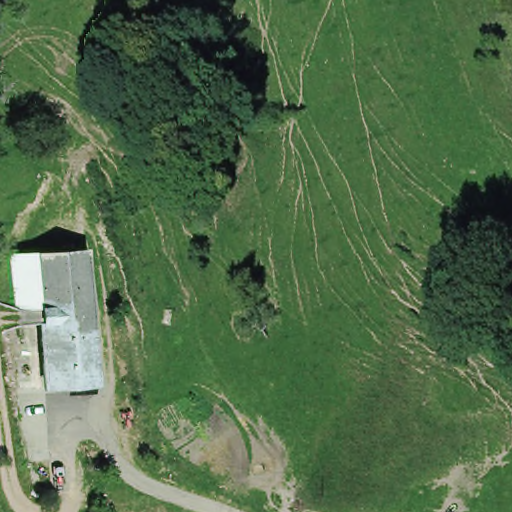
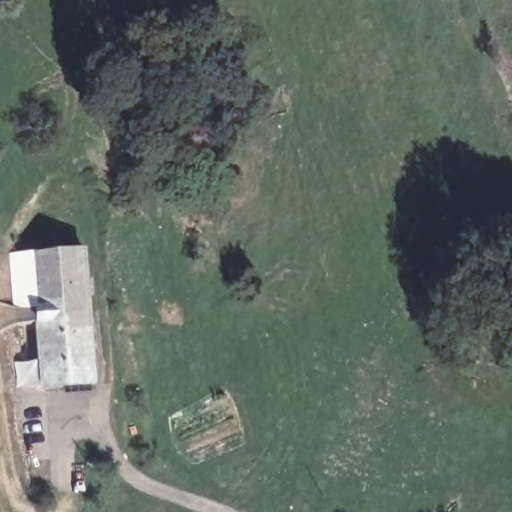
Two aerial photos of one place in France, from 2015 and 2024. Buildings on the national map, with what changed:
unchanged [(42,321),(35,251),(84,247),(97,379),(48,384),(42,321)]
unchanged [(19,323),(13,254),(35,251),(42,321),(19,323)]

